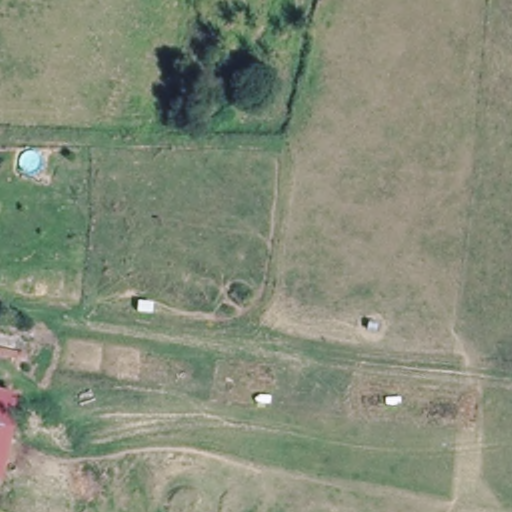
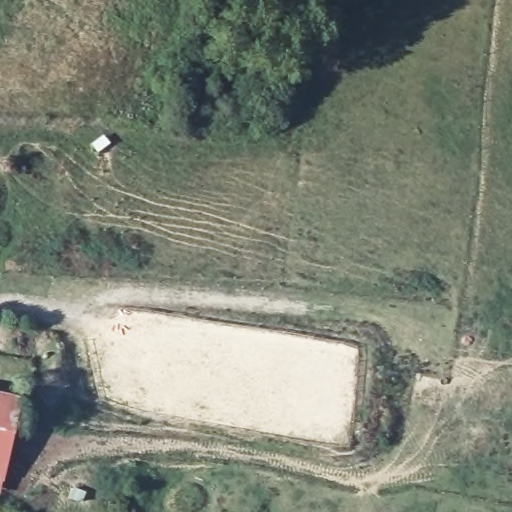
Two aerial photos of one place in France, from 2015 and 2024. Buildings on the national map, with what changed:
unchanged [(25,397),(5,466),(1,481),(0,481),(0,391),(25,397)]

